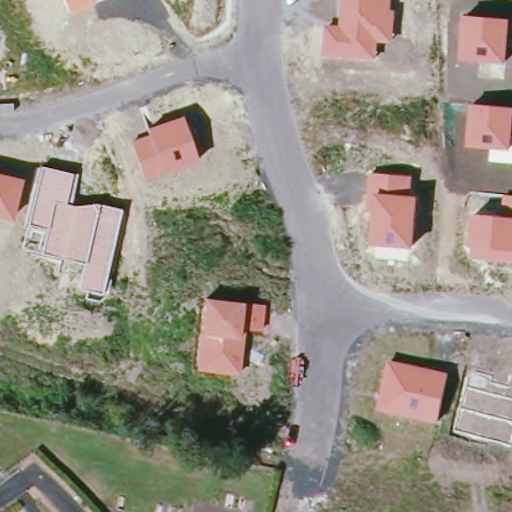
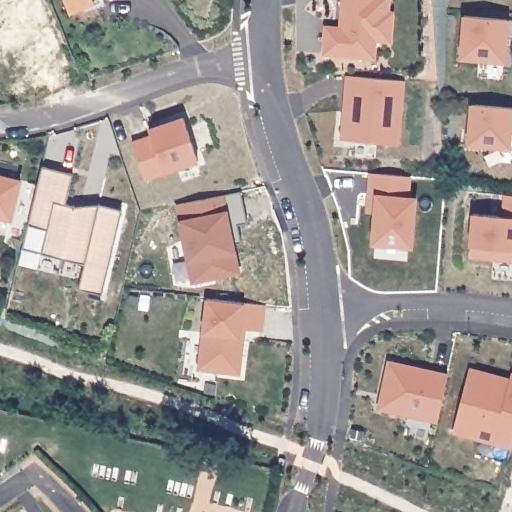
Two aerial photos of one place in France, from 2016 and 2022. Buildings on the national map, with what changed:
unchanged [(94,7),(69,15),(64,0),(92,0),(93,2),(94,7)]
unchanged [(395,10),(391,44),(378,43),(377,59),(322,55),(324,26),(338,27),(340,0),(392,0),(391,9),(395,10)]
unchanged [(512,38),(507,37),(506,64),(460,59),(463,16),(512,19),(512,38)]
new [(341,137),(345,75),(406,80),(400,142),(341,137)]
unchanged [(512,125),(511,150),(466,145),(468,104),(512,108),(512,125)]
unchanged [(150,135),(147,127),(183,117),(197,162),(144,180),(132,141),(150,135)]
unchanged [(78,174),(70,206),(97,202),(123,211),(107,277),(112,280),(107,295),(77,287),(83,265),(40,255),(45,234),(25,228),(40,165),(78,174)]
unchanged [(411,177),(410,196),(416,197),(412,249),(371,246),(373,212),(365,212),(370,172),(411,177)]
unchanged [(22,179),(12,219),(0,216),(0,174),(22,179)]
new [(247,222),(238,225),(241,242),(233,244),(239,272),(192,282),(176,205),(241,192),(247,222)]
unchanged [(502,195),(512,196),(512,262),(470,258),(472,248),(468,247),(472,214),(500,216),(502,195)]
unchanged [(266,306),(261,332),(245,330),(240,374),(196,369),(205,298),(266,306)]
unchanged [(448,373),(437,423),(376,408),(387,359),(448,373)]
new [(476,373),(492,377),(491,383),(507,387),(511,376),(512,376),(512,447),(460,434),(470,395),(476,373)]

